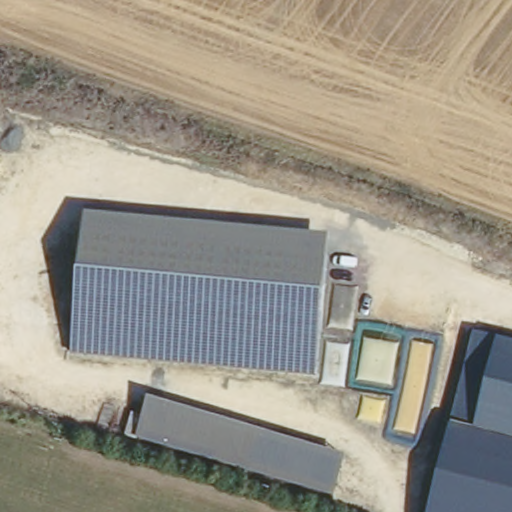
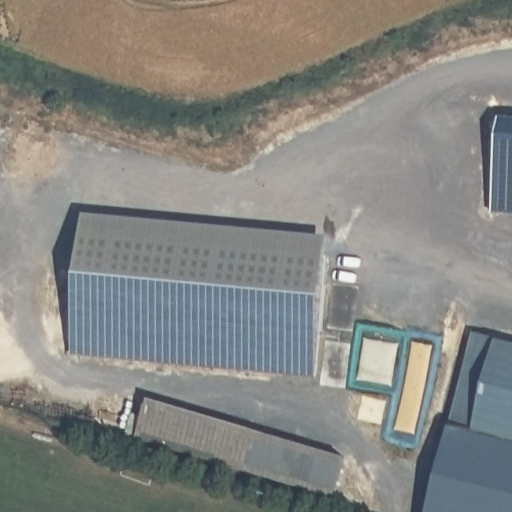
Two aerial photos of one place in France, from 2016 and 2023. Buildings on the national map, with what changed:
new [(502,120),(512,121),(512,215),(492,214),(502,120)]
unchanged [(84,214),(327,237),(312,379),(71,356),(84,214)]
unchanged [(512,342),(512,512),(429,512),(452,417),(458,420),(481,334),(512,342)]
unchanged [(335,498),(138,440),(147,398),(344,459),(335,498)]

